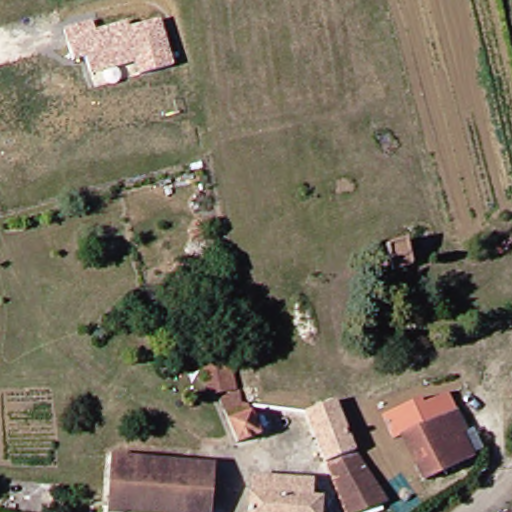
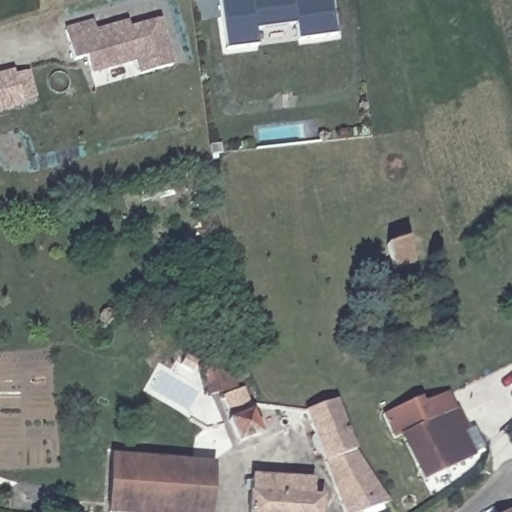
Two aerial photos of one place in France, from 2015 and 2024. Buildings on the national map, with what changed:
new [(220,0),(330,0),(334,34),(297,39),(295,25),(255,31),(258,44),(226,49),(220,0)]
unchanged [(92,19),(95,28),(127,19),(129,25),(162,18),(174,65),(138,74),(134,64),(90,75),(85,58),(73,61),(63,28),(92,19)]
new [(0,113),(0,74),(13,70),(14,75),(28,72),(35,96),(23,101),(22,106),(0,113)]
unchanged [(409,267),(387,273),(382,255),(404,249),(409,267)]
unchanged [(226,350),(242,397),(225,406),(220,394),(214,395),(202,357),(226,350)]
new [(383,417),(422,398),(425,403),(448,394),(455,409),(393,439),(383,417)]
unchanged [(225,406),(242,397),(242,399),(243,404),(272,416),(276,431),(275,432),(272,435),(268,437),(243,447),(225,406)]
unchanged [(394,501),(364,512),(351,512),(311,413),(340,402),(359,448),(394,501)]
unchanged [(471,429),(464,433),(474,457),(429,479),(409,436),(463,408),(471,429)]
unchanged [(193,465),(192,512),(116,512),(118,459),(193,465)]
unchanged [(219,468),(218,512),(192,512),(193,465),(219,468)]
unchanged [(250,498),(256,498),(256,479),(312,482),(313,496),(323,496),(323,512),(250,512),(250,498)]
unchanged [(512,509),(512,512),(506,512),(512,509)]

